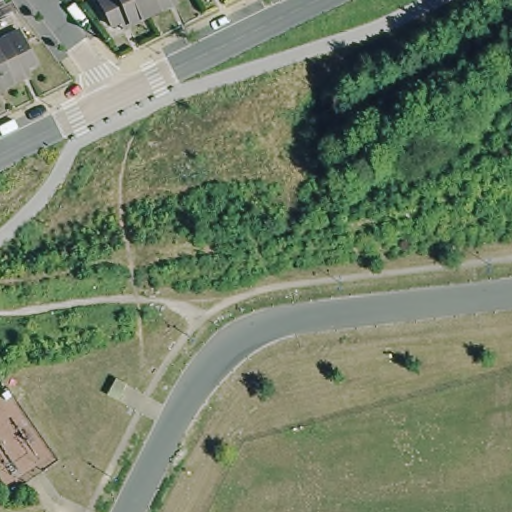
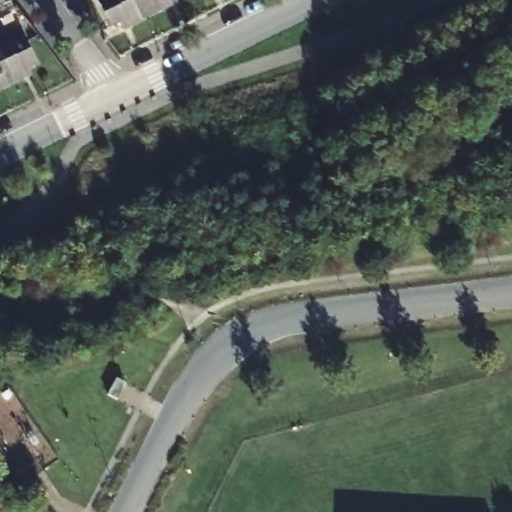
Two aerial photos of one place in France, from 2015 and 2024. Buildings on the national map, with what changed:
unchanged [(12,11),(0,17),(0,0),(2,3),(7,0),(12,11)]
unchanged [(132,28),(129,21),(112,29),(98,0),(142,0),(151,19),(132,28)]
unchanged [(172,0),(170,1),(174,9),(151,19),(142,0),(172,0)]
unchanged [(0,81),(0,39),(19,30),(36,65),(21,72),(25,79),(4,89),(0,81)]
unchanged [(4,89),(0,91),(0,81),(4,89)]

